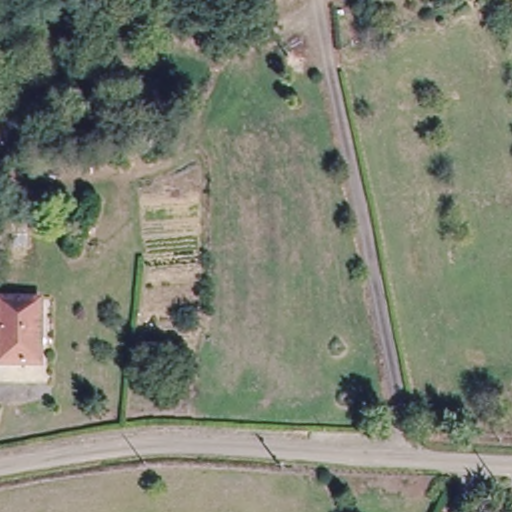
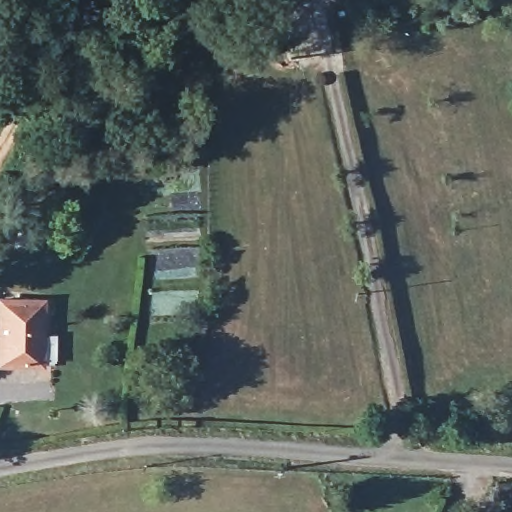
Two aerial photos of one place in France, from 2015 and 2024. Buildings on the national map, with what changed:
unchanged [(2,358),(4,299),(45,300),(44,355),(2,358)]

